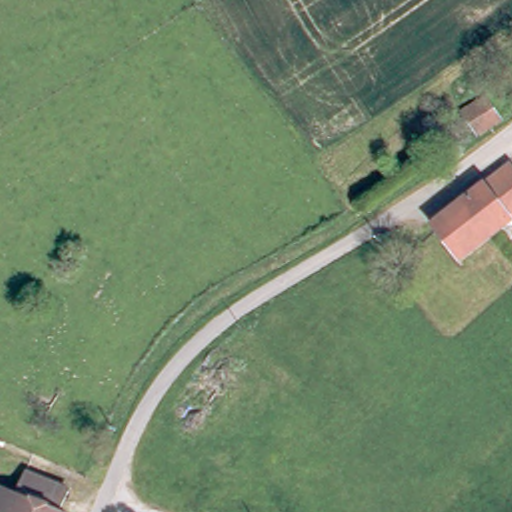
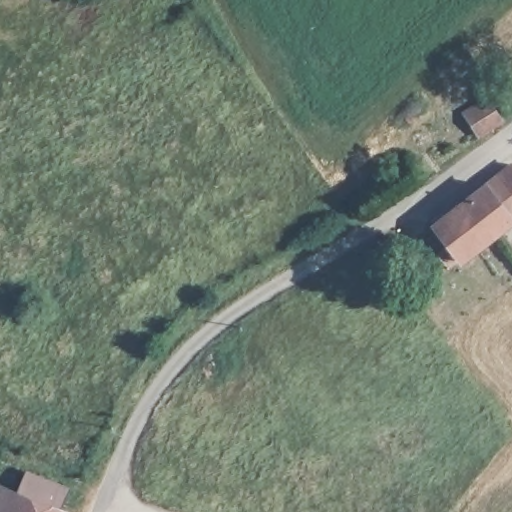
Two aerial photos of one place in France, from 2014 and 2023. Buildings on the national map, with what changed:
unchanged [(502,120),(478,135),(473,127),(464,113),(488,98),(495,109),(502,120)]
unchanged [(431,223),(512,162),(512,225),(461,264),(431,223)]
unchanged [(15,491),(24,469),(65,485),(56,507),(63,510),(62,512),(0,512),(0,485),(15,491)]

